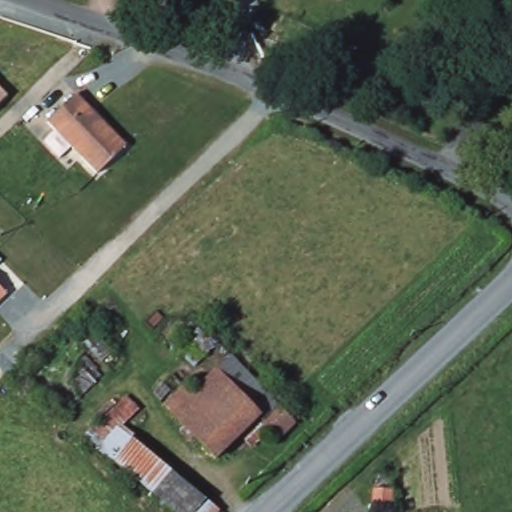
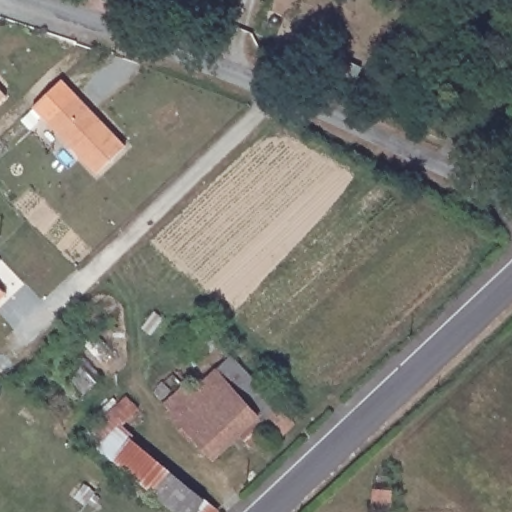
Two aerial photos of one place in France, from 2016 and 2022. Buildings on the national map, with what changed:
unchanged [(0,97),(0,85),(6,91),(0,97)]
unchanged [(75,89),(125,141),(96,169),(46,117),(75,89)]
unchanged [(0,304),(0,292),(6,299),(0,304)]
unchanged [(295,423),(277,440),(268,431),(250,447),(240,436),(215,459),(163,404),(183,385),(192,394),(231,356),(295,423)]
unchanged [(171,512),(84,437),(125,397),(139,412),(120,430),(130,437),(223,510),(222,512),(171,512)]
unchanged [(391,490),(390,508),(372,507),(373,489),(391,490)]

